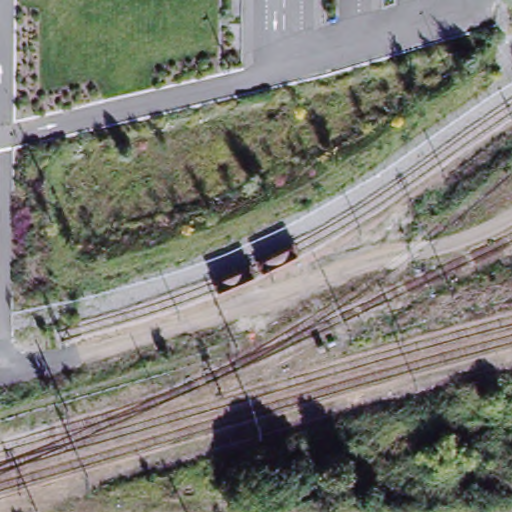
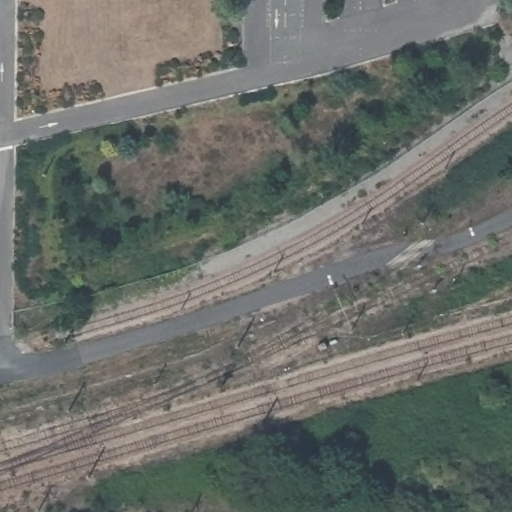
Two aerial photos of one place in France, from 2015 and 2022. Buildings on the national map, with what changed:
unchanged [(194,205),(223,198),(226,211),(196,217),(194,205)]

